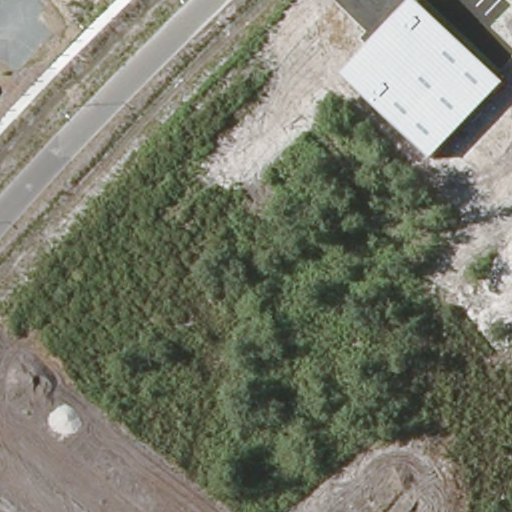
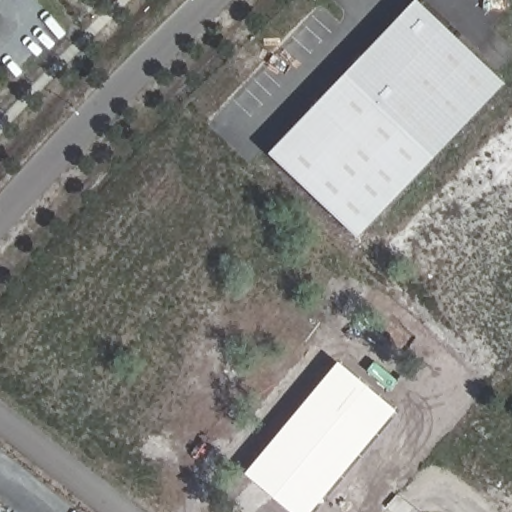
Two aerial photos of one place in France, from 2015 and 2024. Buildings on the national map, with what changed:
unchanged [(435,156),(346,76),(417,0),(420,0),(507,82),(435,156)]
new [(359,235),(272,152),(346,76),(435,156),(359,235)]
new [(341,360),(397,409),(311,512),(293,512),(245,473),(341,360)]

